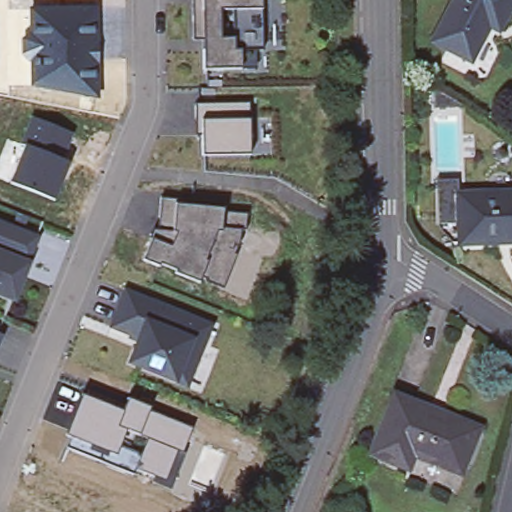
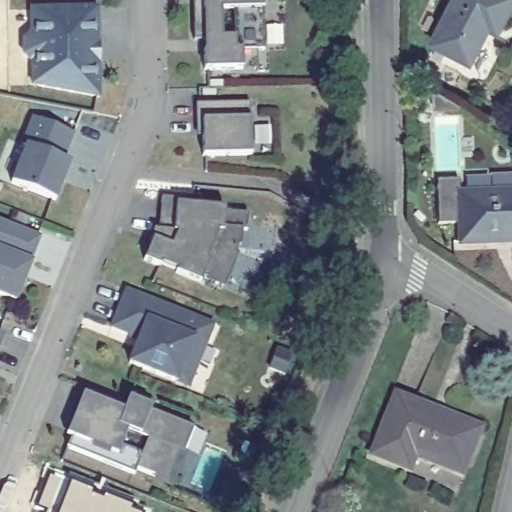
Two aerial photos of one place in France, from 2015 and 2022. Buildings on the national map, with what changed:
unchanged [(207,72),(207,52),(212,52),(212,42),(197,43),(196,0),(274,0),(275,0),(266,0),(267,54),(258,54),(258,72),(245,72),(207,72)]
unchanged [(478,31),(459,65),(431,49),(460,0),(511,0),(490,37),(478,31)]
unchanged [(96,100),(30,87),(30,62),(27,62),(21,56),(21,42),(27,36),(30,36),(29,11),(95,10),(95,49),(95,61),(96,100)]
unchanged [(458,105),(431,106),(430,86),(458,105)]
unchanged [(249,122),(250,155),(203,155),(202,135),(197,134),(196,104),(249,104),(249,122)]
unchanged [(26,146),(22,144),(35,120),(74,135),(62,160),(70,162),(55,199),(10,180),(26,146)]
unchanged [(452,190),(451,184),(474,182),(475,189),(475,199),(512,196),(512,244),(478,246),(477,227),(455,229),(452,190)]
unchanged [(193,202),(205,204),(205,208),(227,210),(227,214),(250,216),(249,233),(242,232),(240,251),(224,290),(208,284),(209,282),(205,280),(202,285),(178,275),(179,272),(163,266),(162,268),(146,262),(155,240),(161,242),(162,233),(161,233),(164,200),(193,202)]
unchanged [(12,302),(0,297),(0,223),(5,225),(37,239),(12,302)]
unchanged [(174,384),(126,365),(135,343),(134,336),(129,337),(109,329),(124,292),(210,327),(193,368),(185,388),(174,384)]
unchanged [(5,336),(0,347),(0,334),(5,336)]
unchanged [(466,465),(418,450),(413,465),(380,454),(399,391),(480,425),(466,465)]
unchanged [(171,492),(150,484),(152,476),(135,470),(132,476),(68,449),(71,441),(65,439),(80,393),(150,420),(152,412),(194,429),(171,492)]
new [(47,508),(39,505),(51,473),(95,487),(93,492),(105,496),(106,492),(133,502),(131,506),(145,511),(145,512),(46,512),(47,508)]

